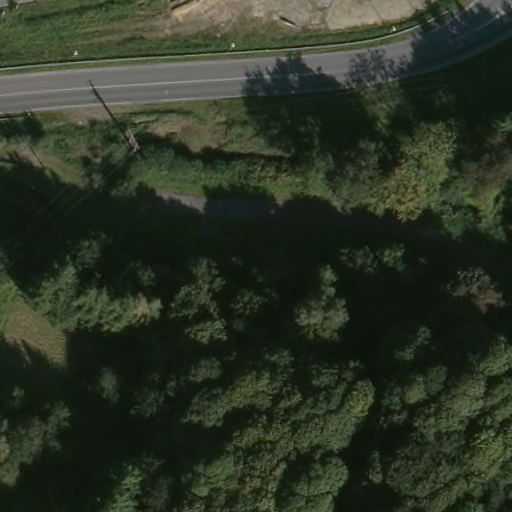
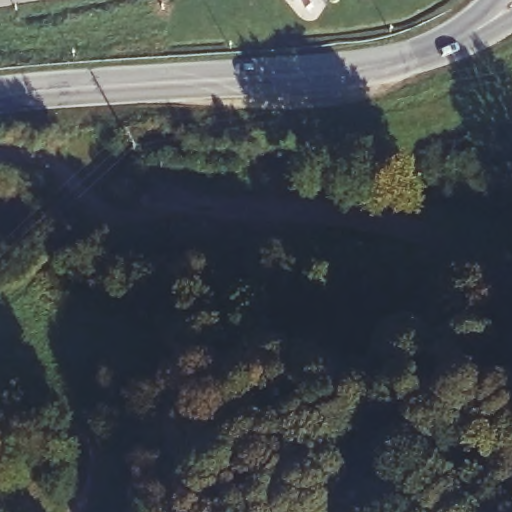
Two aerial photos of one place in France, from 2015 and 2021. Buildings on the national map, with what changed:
[]

